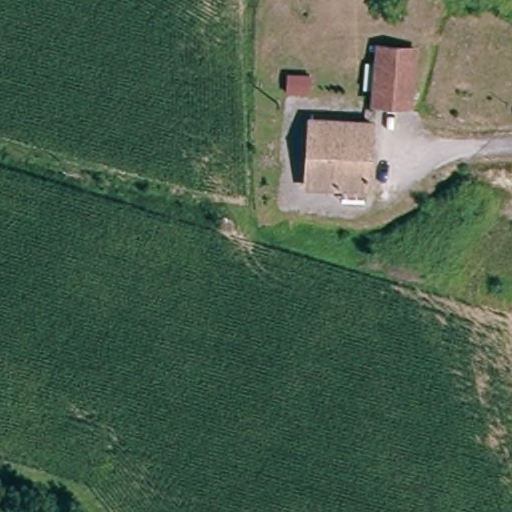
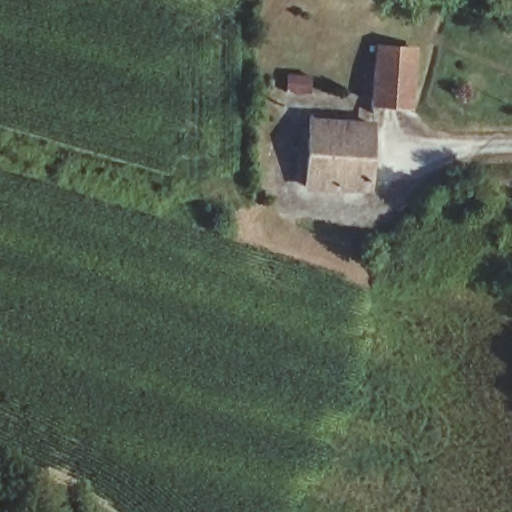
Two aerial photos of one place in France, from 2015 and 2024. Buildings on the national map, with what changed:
unchanged [(397,106),(372,105),(376,46),(401,47),(397,106)]
unchanged [(365,187),(304,182),(309,124),(370,130),(365,187)]

